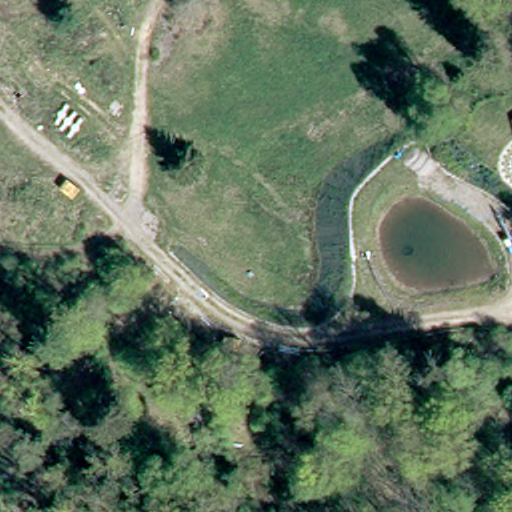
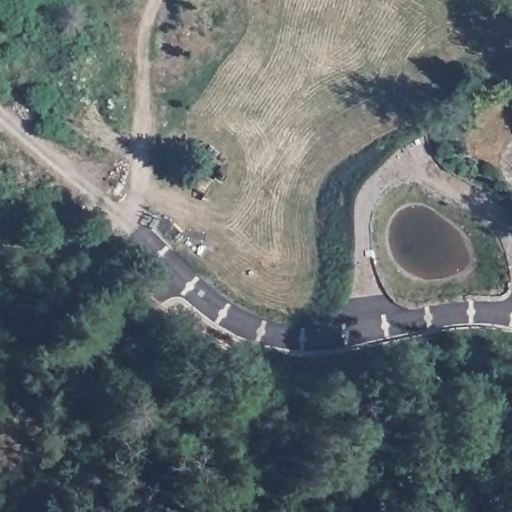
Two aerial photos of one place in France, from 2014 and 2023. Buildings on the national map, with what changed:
[]

